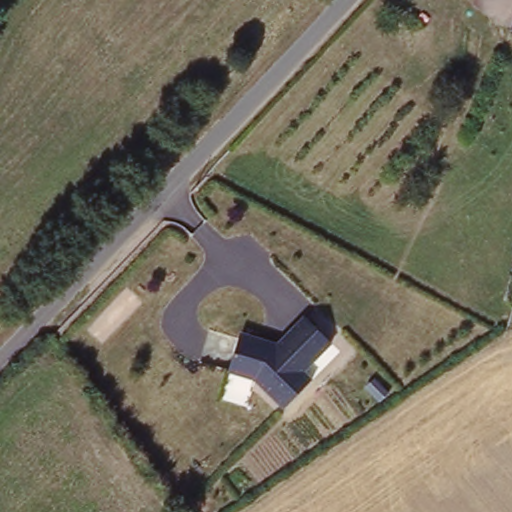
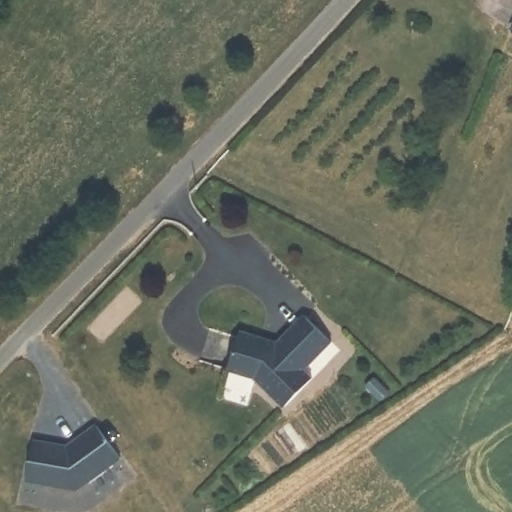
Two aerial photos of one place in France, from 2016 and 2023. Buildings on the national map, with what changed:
unchanged [(267,330),(277,337),(305,307),(333,335),(304,373),(312,384),(285,407),(258,378),(229,372),(242,329),(267,330)]
new [(34,441),(70,447),(97,425),(120,459),(76,490),(28,482),(34,441)]

